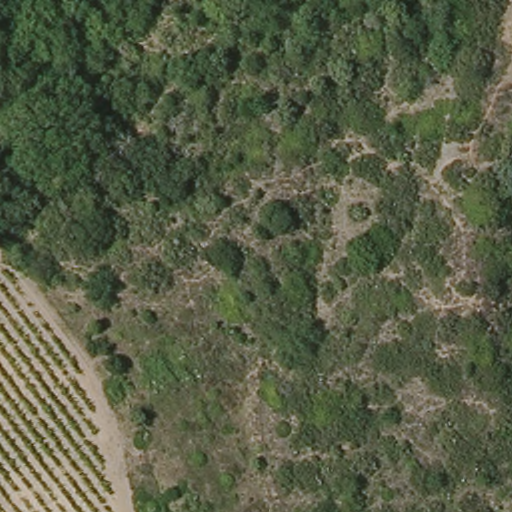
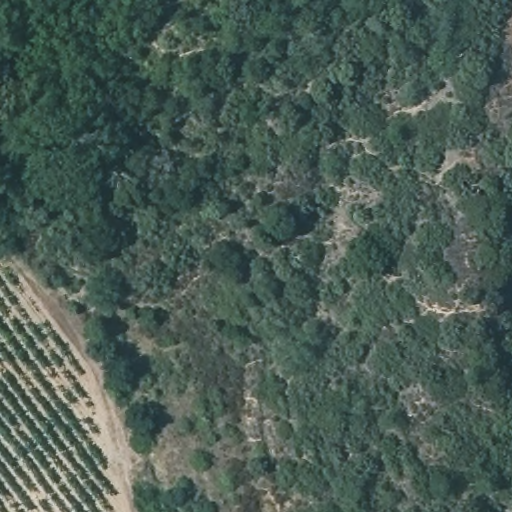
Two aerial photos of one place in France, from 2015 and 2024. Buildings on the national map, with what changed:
[]

